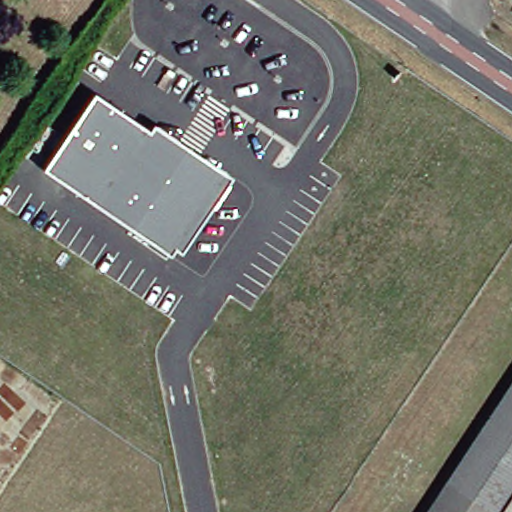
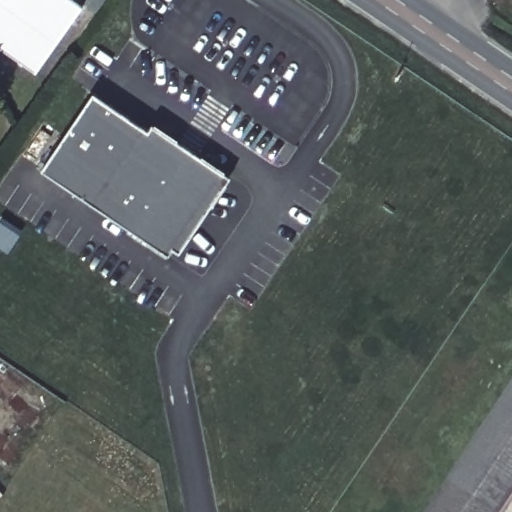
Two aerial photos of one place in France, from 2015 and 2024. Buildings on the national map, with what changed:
new [(35,72),(0,48),(0,0),(76,0),(83,5),(35,72)]
unchanged [(97,95),(224,182),(172,258),(45,172),(97,95)]
unchanged [(434,490),(512,373),(512,487),(496,512),(420,512),(434,490)]

